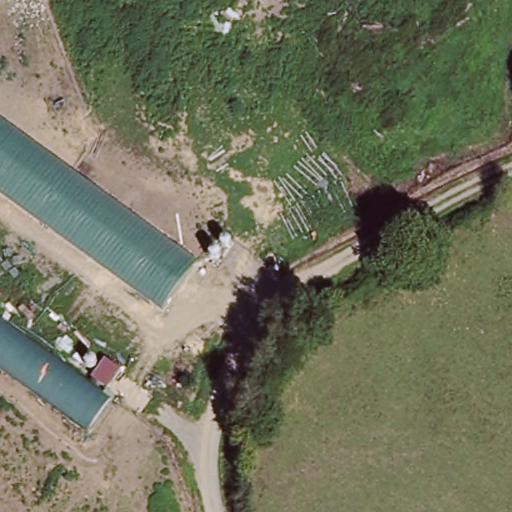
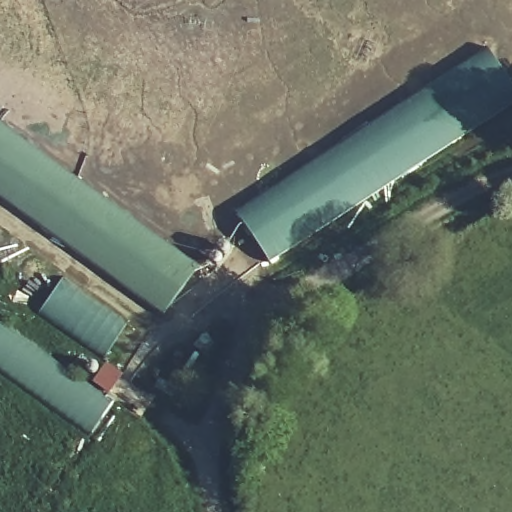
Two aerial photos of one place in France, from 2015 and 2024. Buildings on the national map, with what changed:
new [(512,86),(512,103),(269,264),(236,214),(487,48),(512,86)]
unchanged [(198,265),(162,316),(0,201),(0,126),(198,265)]
new [(128,324),(101,362),(36,316),(63,278),(128,324)]
unchanged [(83,440),(0,380),(0,324),(110,403),(83,440)]

